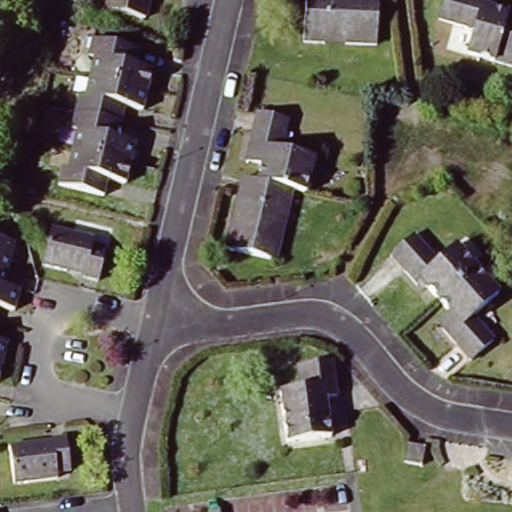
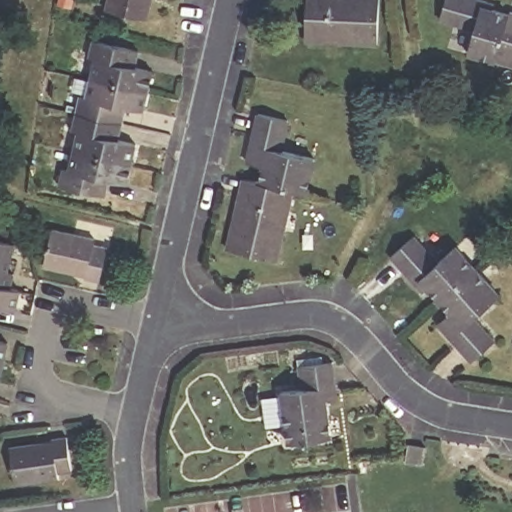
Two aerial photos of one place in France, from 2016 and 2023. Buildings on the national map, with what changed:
unchanged [(108,14),(111,0),(152,0),(147,22),(108,14)]
unchanged [(307,0),(379,0),(377,44),(346,42),(326,42),(304,41),(307,0)]
unchanged [(471,57),(478,34),(444,25),(451,0),(470,0),(485,4),(490,6),(489,12),(512,18),(512,23),(500,66),(471,57)]
unchanged [(512,23),(512,69),(500,66),(512,23)]
unchanged [(135,66),(153,71),(148,92),(143,111),(125,107),(122,124),(118,141),(135,144),(131,165),(127,182),(109,179),(105,196),(60,186),(64,168),(71,170),(75,152),(79,132),(73,130),(77,114),(81,96),(87,97),(92,79),(97,58),(91,57),(95,39),(139,50),(135,66)]
unchanged [(249,155),(258,113),(288,120),(281,151),(315,159),(307,194),(292,190),(259,182),(264,167),(247,163),(249,155)]
unchanged [(242,179),(259,182),(292,190),(288,211),(283,231),(276,261),(226,249),(231,227),(234,216),(242,179)]
unchanged [(100,286),(86,283),(87,278),(45,270),(52,234),(95,244),(94,249),(107,252),(100,286)]
unchanged [(8,273),(14,274),(11,287),(20,290),(15,311),(0,307),(0,239),(15,242),(8,273)]
unchanged [(416,291),(390,262),(413,241),(436,267),(455,251),(474,271),(438,305),(427,293),(422,298),(416,291)]
unchanged [(449,318),(438,305),(474,271),(499,298),(473,322),(494,346),(471,367),(441,334),(437,329),(449,318)]
unchanged [(7,343),(2,362),(0,371),(0,341),(7,343)]
unchanged [(331,443),(288,449),(281,397),(301,395),(298,372),(332,367),(337,403),(326,405),(327,415),(331,443)]
unchanged [(71,470),(57,472),(58,478),(15,485),(10,448),(53,442),(53,439),(67,437),(71,470)]
unchanged [(422,471),(406,467),(409,450),(425,453),(422,471)]

